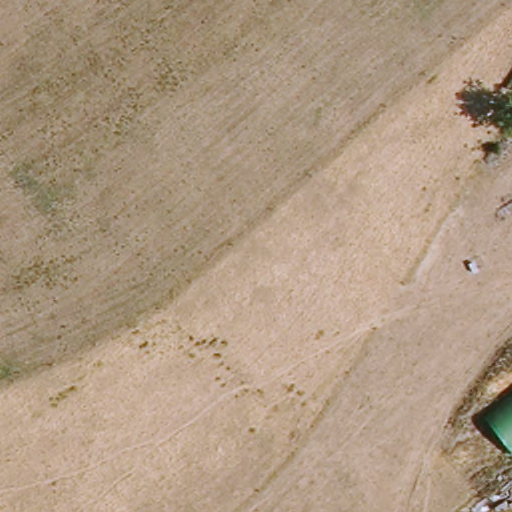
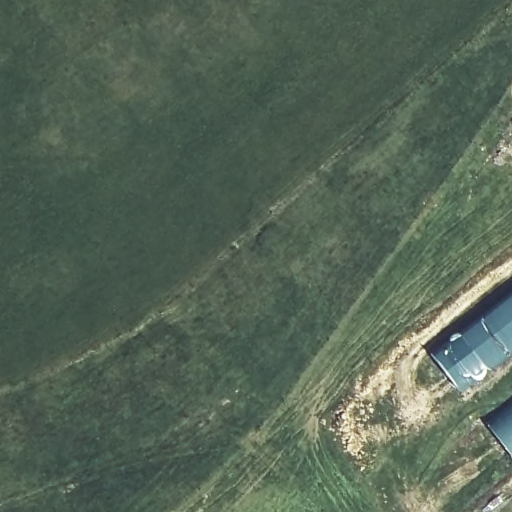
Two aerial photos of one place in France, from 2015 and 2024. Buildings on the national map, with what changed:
new [(464,394),(430,355),(512,290),(512,356),(464,394)]
unchanged [(485,421),(512,400),(512,457),(485,421)]

